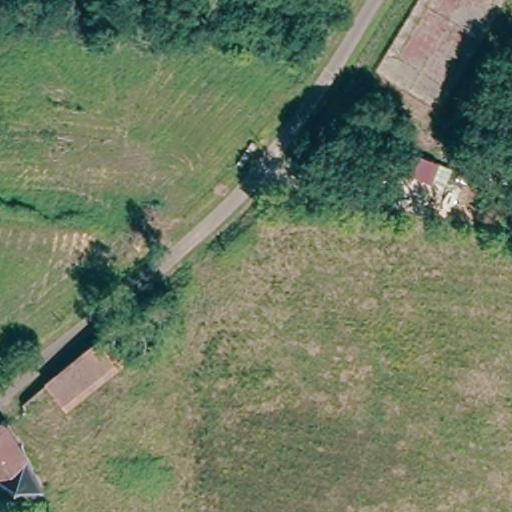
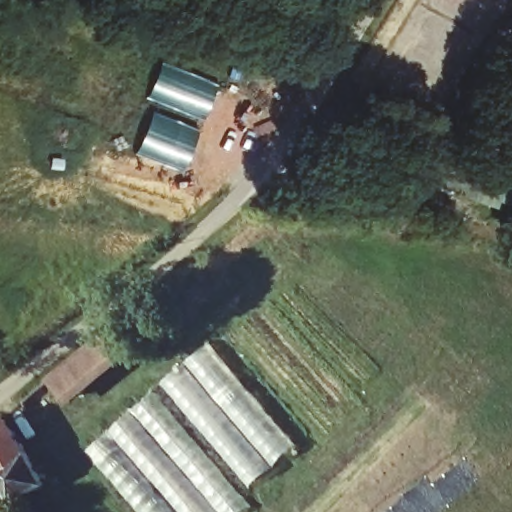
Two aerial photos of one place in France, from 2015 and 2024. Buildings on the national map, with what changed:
new [(154,59),(212,82),(197,123),(140,98),(154,59)]
new [(145,107),(196,126),(177,170),(128,152),(145,107)]
new [(492,205),(414,174),(424,151),(470,171),(478,154),(507,165),(512,167),(512,205),(496,199),(492,205)]
unchanged [(126,359),(69,404),(44,379),(100,332),(126,359)]
new [(250,487),(160,383),(206,344),(295,446),(250,487)]
new [(243,512),(140,512),(86,451),(152,394),(250,506),(243,512)]
unchanged [(40,473),(15,501),(0,485),(0,430),(40,473)]

